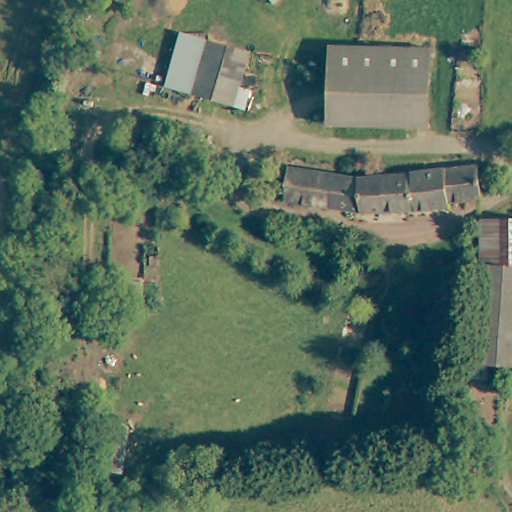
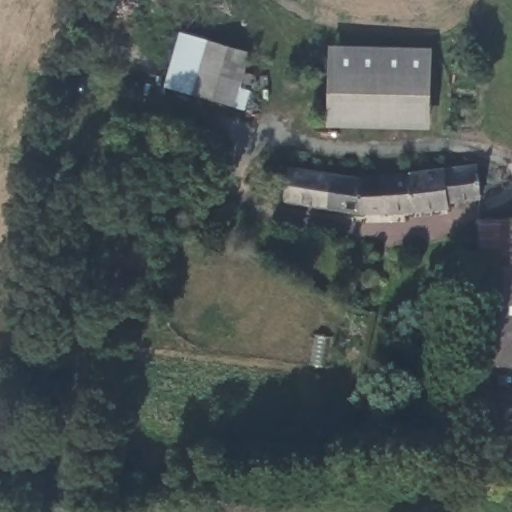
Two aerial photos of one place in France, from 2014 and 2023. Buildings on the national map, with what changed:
unchanged [(170,85),(182,34),(207,40),(194,92),(170,85)]
unchanged [(207,40),(251,50),(242,85),(251,87),(247,105),(194,92),(207,40)]
unchanged [(331,117),(334,50),(435,55),(432,122),(331,117)]
unchanged [(286,200),(290,167),(330,174),(326,207),(286,200)]
unchanged [(478,168),(479,174),(478,190),(478,200),(455,201),(447,201),(447,209),(415,211),(412,172),(478,168)]
unchanged [(353,177),(354,177),(412,172),(415,211),(366,215),(326,207),(330,174),(353,177)]
unchanged [(477,364),(480,337),(483,300),(485,262),(483,220),(512,220),(512,366),(477,364)]

